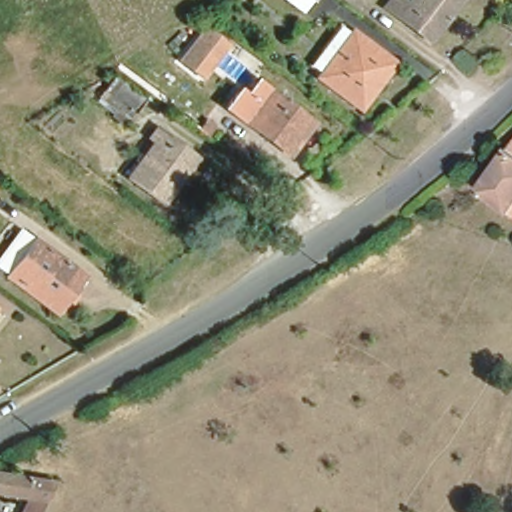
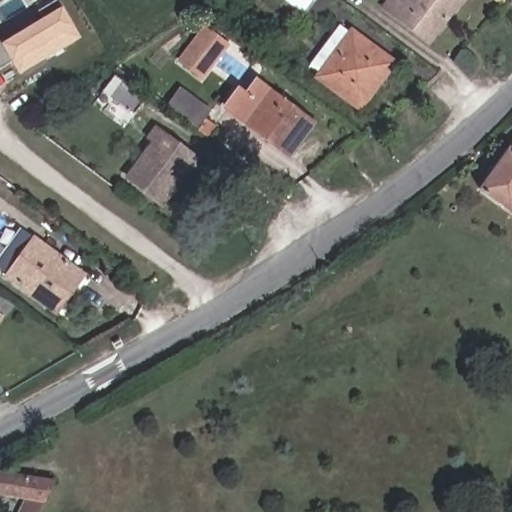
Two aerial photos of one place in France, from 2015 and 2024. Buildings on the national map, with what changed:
unchanged [(298,7),(289,0),(310,0),(308,2),(303,2),(298,7)]
unchanged [(458,0),(432,35),(387,3),(390,0),(458,0)]
new [(59,9),(77,40),(20,74),(12,61),(0,68),(0,40),(2,43),(59,9)]
unchanged [(360,104),(318,70),(307,62),(340,19),(351,27),(393,58),(393,59),(360,104)]
unchanged [(231,42),(203,80),(192,74),(182,85),(159,65),(168,52),(177,58),(205,22),(231,42)]
new [(0,33),(1,35),(0,35),(0,33)]
unchanged [(101,82),(96,88),(95,87),(80,75),(84,69),(91,74),(101,62),(125,79),(115,91),(101,82)]
unchanged [(313,118),(288,151),(232,109),(255,77),(258,76),(313,118)]
unchanged [(193,152),(185,162),(179,170),(159,195),(152,190),(126,170),(127,169),(149,138),(150,136),(146,132),(154,123),(186,146),(193,152)]
unchanged [(478,185),(512,140),(512,209),(478,185)]
unchanged [(39,240),(70,264),(44,301),(0,268),(0,254),(19,229),(36,241),(39,240)]
unchanged [(36,512),(9,512),(19,493),(0,490),(0,465),(54,472),(36,512)]

